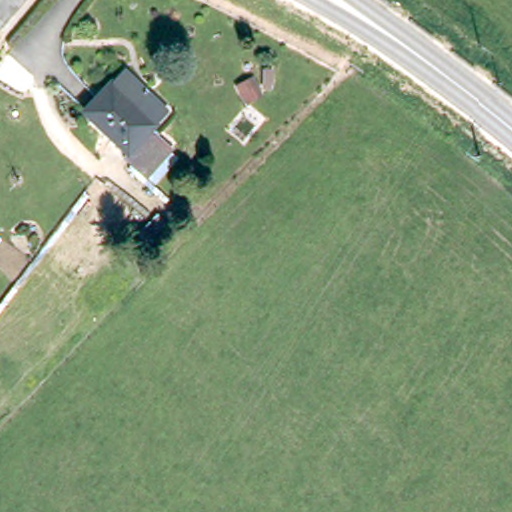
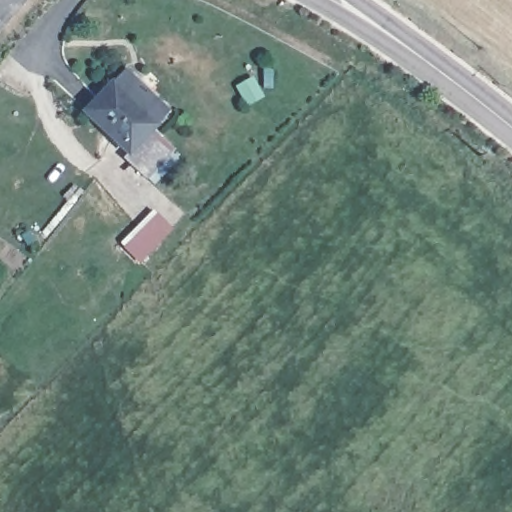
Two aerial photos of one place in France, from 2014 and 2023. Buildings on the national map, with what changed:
unchanged [(168,109),(153,124),(127,153),(85,114),(126,71),(149,93),(168,109)]
new [(174,230),(139,263),(123,247),(156,212),(174,230)]

